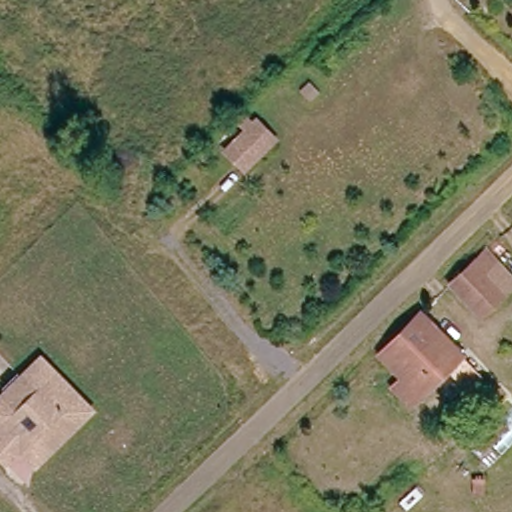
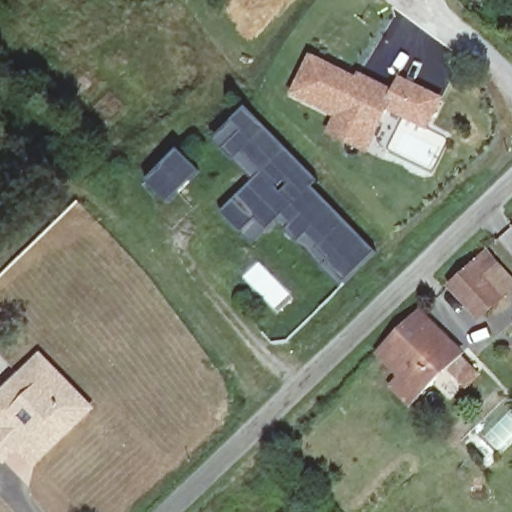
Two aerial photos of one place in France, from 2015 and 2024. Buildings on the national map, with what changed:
new [(341,120),(297,99),(314,62),(360,84),(362,78),(375,84),(397,95),(404,81),(445,100),(431,129),(391,110),(377,140),(371,154),(333,136),(340,123),(341,120)]
new [(318,183),(312,188),(378,255),(341,289),(277,223),(252,246),(221,213),(254,182),(215,141),(246,109),(318,183)]
demolished [(257,116),(275,134),(253,156),(235,138),(257,116)]
new [(200,172),(169,204),(147,182),(179,151),(200,172)]
unchanged [(512,291),(483,320),(452,289),(485,256),(512,284),(512,291)]
unchanged [(405,382),(381,359),(423,315),(465,357),(411,410),(393,392),(405,382)]
unchanged [(0,454),(0,427),(0,426),(0,393),(37,355),(87,405),(33,459),(16,443),(2,457),(0,454)]

